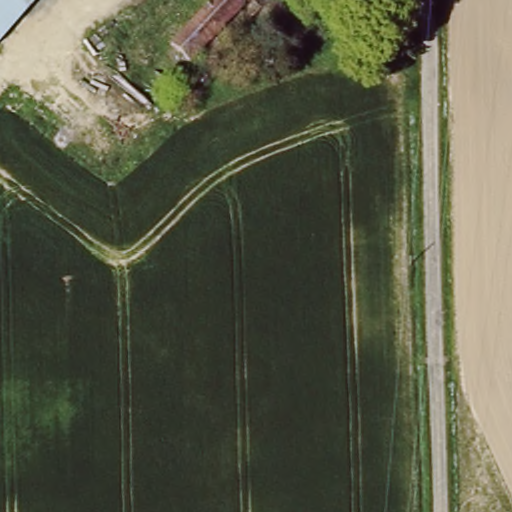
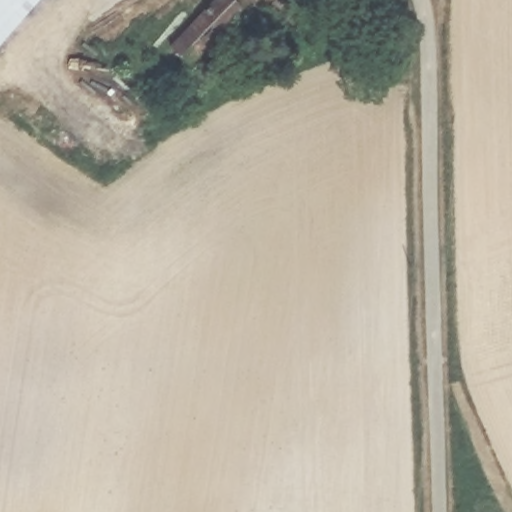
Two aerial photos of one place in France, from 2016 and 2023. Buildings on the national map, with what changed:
unchanged [(2,48),(0,47),(0,0),(43,0),(2,48)]
unchanged [(219,0),(256,0),(257,1),(254,6),(262,15),(252,26),(240,17),(192,64),(174,46),(219,0)]
unchanged [(373,0),(391,0),(392,0),(375,27),(360,18),(373,0)]

